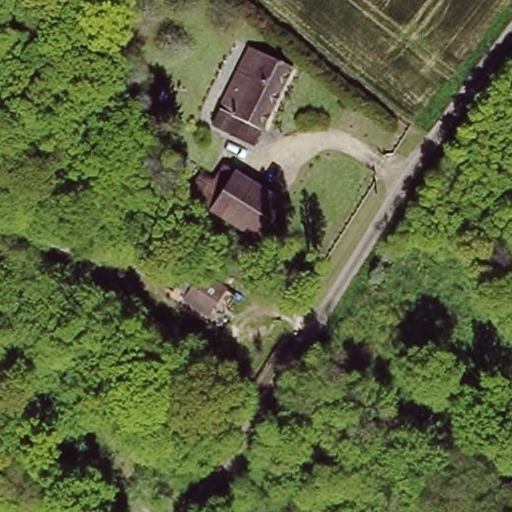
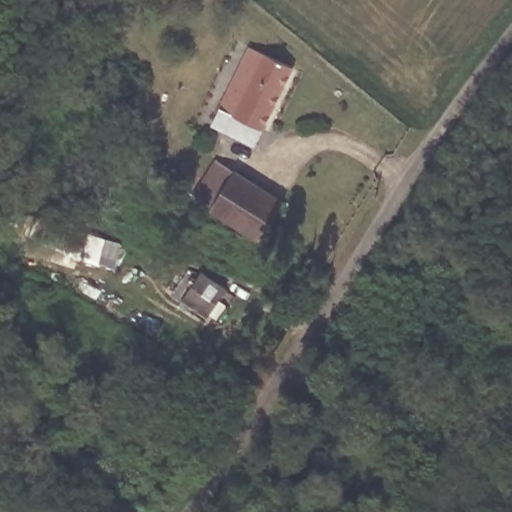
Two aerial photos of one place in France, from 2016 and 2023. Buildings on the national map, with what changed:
unchanged [(254,44),(301,64),(289,87),(294,90),(291,100),(284,96),(259,146),(215,124),(254,44)]
unchanged [(292,202),(268,240),(232,214),(209,202),(231,167),(292,202)]
unchanged [(63,222),(146,239),(139,255),(128,253),(125,259),(110,255),(108,262),(54,246),(63,222)]
unchanged [(211,254),(241,269),(213,320),(181,303),(211,254)]

